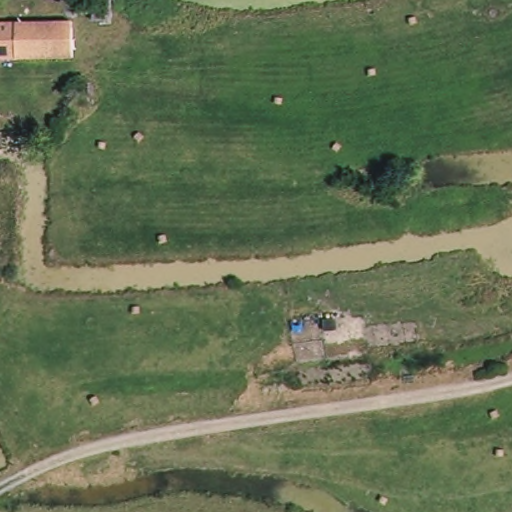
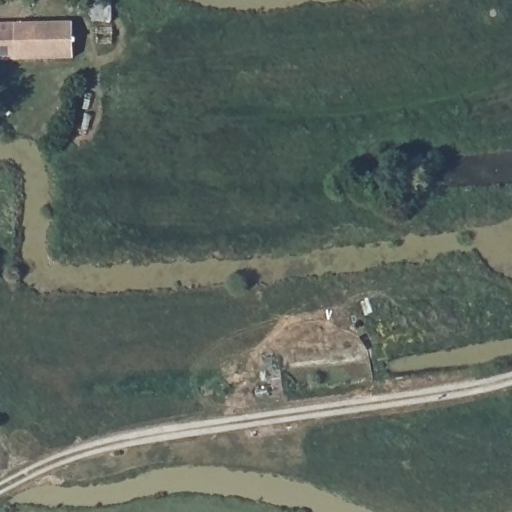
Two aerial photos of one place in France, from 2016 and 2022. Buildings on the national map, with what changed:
unchanged [(0,28),(18,28),(19,60),(0,60),(0,28)]
unchanged [(58,28),(59,59),(19,60),(18,28),(58,28)]

